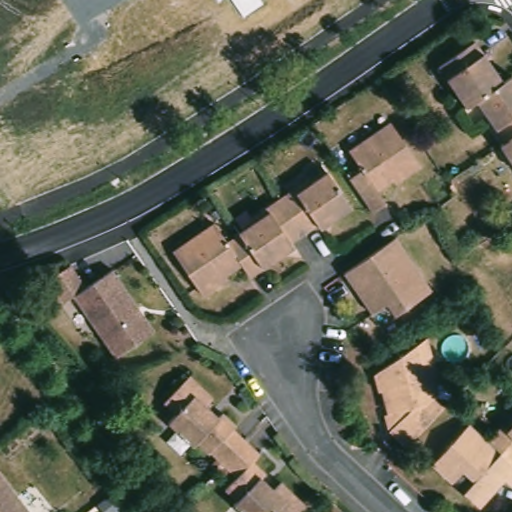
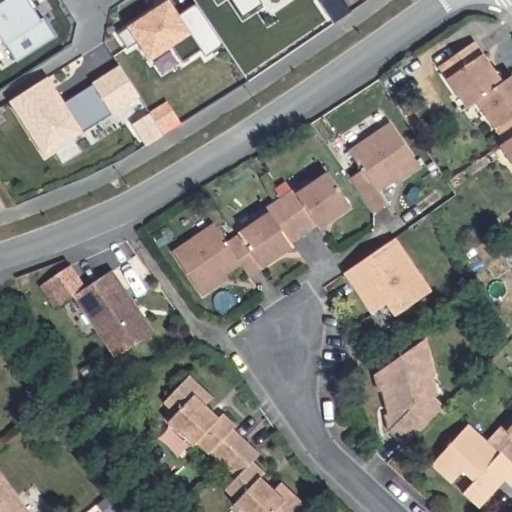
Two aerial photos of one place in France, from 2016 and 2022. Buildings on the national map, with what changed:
new [(34,10),(40,20),(44,18),(55,36),(16,61),(0,36),(0,0),(32,0),(37,8),(34,10)]
new [(219,2),(217,0),(222,0),(219,2)]
new [(263,5),(244,18),(232,0),(260,0),(263,5)]
new [(324,0),(344,0),(352,12),(334,24),(320,3),(324,0)]
new [(169,1),(173,7),(179,15),(196,4),(224,46),(205,58),(201,51),(182,63),(172,47),(150,62),(137,43),(127,50),(117,35),(155,9),(169,1)]
unchanged [(478,103),(475,105),(466,110),(455,94),(440,71),(476,46),(502,86),(512,79),(512,165),(501,151),(507,147),(488,119),(478,103)]
new [(65,104),(75,98),(94,86),(92,83),(120,66),(140,97),(45,157),(10,102),(48,77),(65,104)]
new [(151,115),(167,105),(177,121),(180,125),(164,135),(145,146),(132,125),(150,114),(151,115)]
unchanged [(391,126),(421,171),(406,181),(402,174),(379,189),(390,205),(375,214),(353,181),(364,174),(350,153),(391,126)]
unchanged [(308,181),(311,185),(329,174),(354,212),(333,225),(331,221),(308,236),(280,254),(284,260),(266,271),(252,280),(244,268),(225,281),(226,284),(207,296),(177,251),(215,227),(226,244),(241,234),(258,224),(254,217),(283,198),(308,181)]
unchanged [(395,239),(431,293),(395,317),(386,306),(371,316),(343,274),(395,239)]
unchanged [(113,270),(155,332),(117,357),(75,296),(113,270)]
unchanged [(375,392),(372,378),(411,352),(418,351),(425,354),(430,358),(435,378),(427,381),(433,402),(442,411),(405,450),(388,435),(383,416),(388,413),(380,391),(375,392)]
unchanged [(175,418),(164,407),(189,380),(212,401),(205,409),(220,423),(224,420),(235,431),(232,434),(240,442),(215,458),(200,443),(194,450),(169,426),(175,418)]
unchanged [(490,442),(512,462),(512,484),(510,486),(502,478),(477,506),(464,494),(474,482),(462,472),(451,484),(433,466),(470,424),(490,442)]
unchanged [(505,425),(510,430),(512,428),(512,462),(490,442),(505,425)]
unchanged [(258,459),(250,467),(258,474),(259,483),(270,493),(277,486),(297,505),(291,512),(234,512),(229,507),(235,500),(223,489),(232,479),(220,468),(223,465),(215,458),(240,442),(242,444),(258,459)]
unchanged [(30,512),(0,512),(0,475),(30,512)]
unchanged [(120,512),(101,512),(94,503),(111,489),(126,507),(120,512)]

